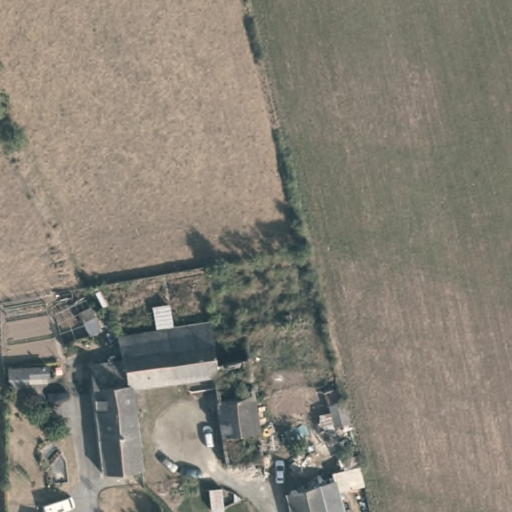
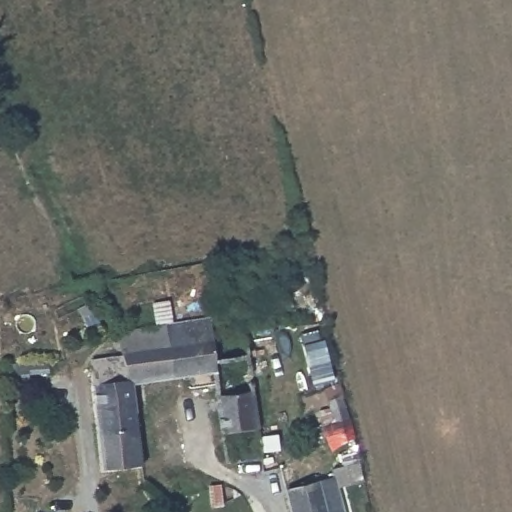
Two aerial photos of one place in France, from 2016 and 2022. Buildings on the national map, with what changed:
unchanged [(217,369),(174,376),(168,331),(183,329),(181,314),(210,311),(212,327),(216,363),(217,369)]
unchanged [(136,381),(144,460),(105,464),(91,355),(121,351),(120,324),(166,319),(168,331),(174,376),(136,381)]
unchanged [(220,394),(217,369),(216,363),(212,327),(246,324),(255,390),(220,394)]
unchanged [(338,422),(329,389),(340,386),(350,419),(338,422)]
unchanged [(225,431),(220,394),(255,390),(259,427),(225,431)]
unchanged [(264,464),(251,465),(250,458),(228,459),(225,431),(259,427),(263,461),(264,464)]
unchanged [(346,512),(304,512),(298,483),(327,475),(345,471),(353,510),(346,512)]
unchanged [(214,504),(210,486),(223,484),(226,503),(214,504)]

